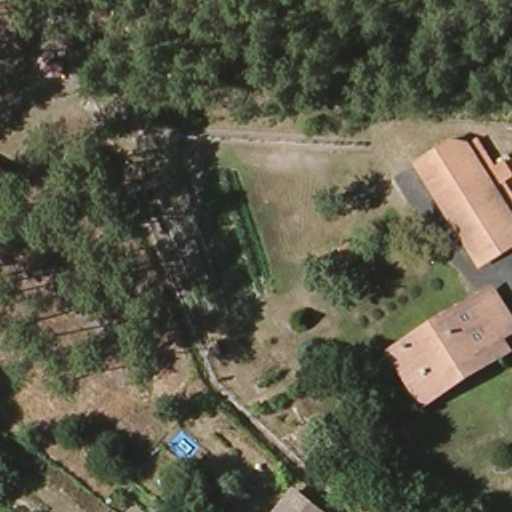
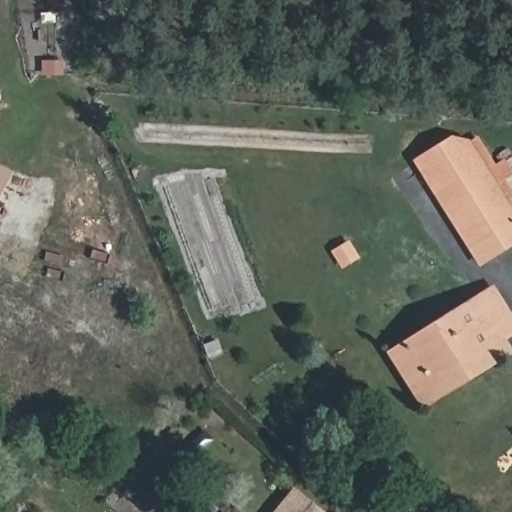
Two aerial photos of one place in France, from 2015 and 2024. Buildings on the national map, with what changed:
unchanged [(460,147),(483,134),(512,180),(512,235),(460,147)]
unchanged [(484,257),(430,163),(460,147),(512,235),(512,240),(484,257)]
new [(0,195),(0,166),(12,172),(0,195)]
unchanged [(435,386),(410,341),(497,289),(512,316),(512,342),(435,386)]
unchanged [(429,403),(397,349),(410,341),(435,386),(512,342),(512,354),(429,403)]
unchanged [(297,488),(327,512),(277,512),(297,488)]

